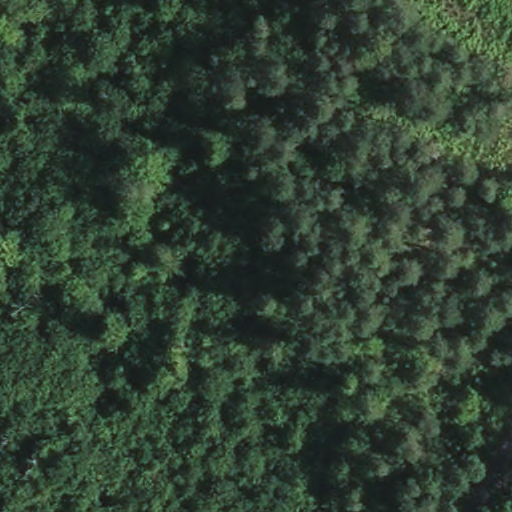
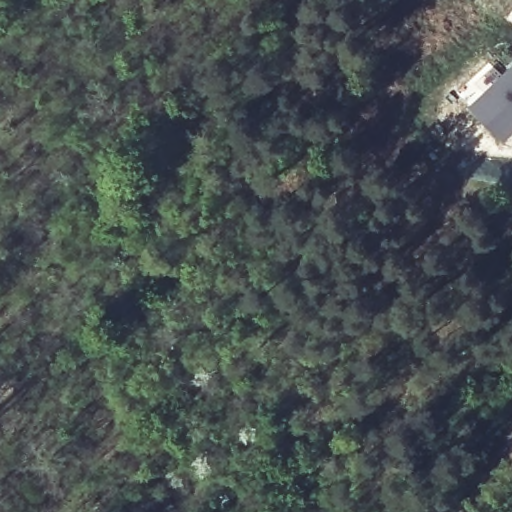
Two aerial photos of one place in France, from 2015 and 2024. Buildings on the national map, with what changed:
new [(502,142),(468,105),(512,66),(512,133),(502,142)]

